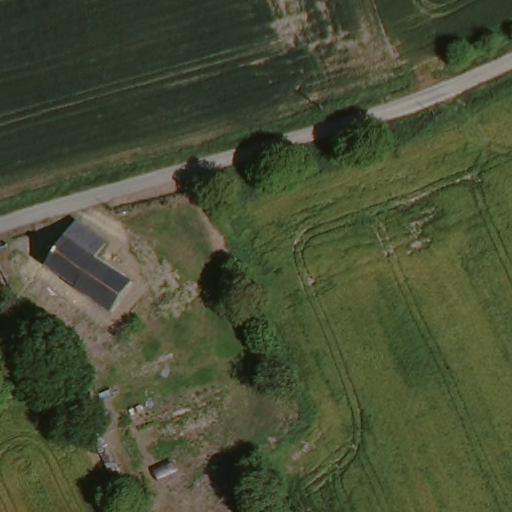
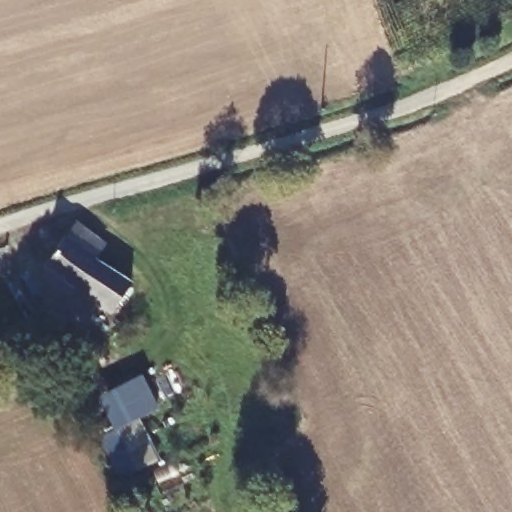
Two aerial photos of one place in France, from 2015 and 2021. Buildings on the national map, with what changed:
unchanged [(100,253),(92,266),(121,284),(103,313),(44,272),(69,229),(100,253)]
new [(158,409),(130,424),(112,389),(141,374),(158,409)]

